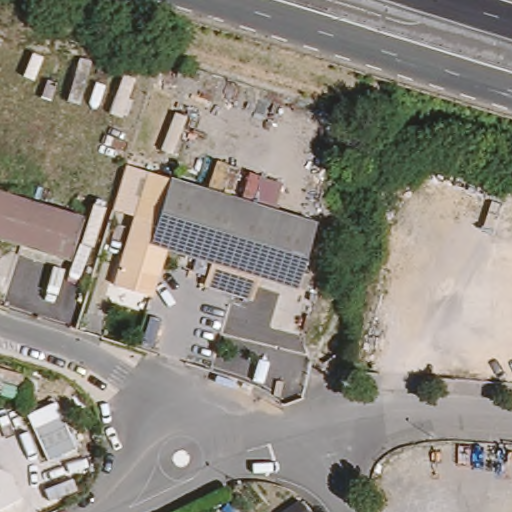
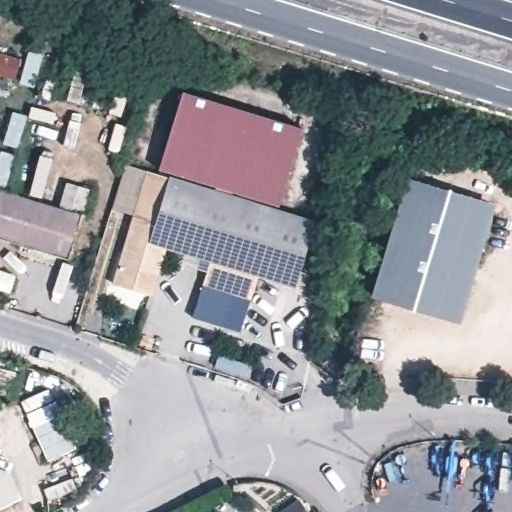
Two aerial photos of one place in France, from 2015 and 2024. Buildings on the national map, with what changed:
new [(15,82),(0,77),(0,53),(22,59),(15,82)]
new [(184,91),(302,127),(280,202),(162,167),(184,91)]
new [(147,206),(162,210),(158,222),(138,216),(115,206),(127,164),(158,171),(147,206)]
unchanged [(317,222),(302,271),(312,273),(307,288),(262,275),(254,300),(231,294),(207,287),(215,262),(172,249),(157,294),(120,283),(138,216),(158,222),(162,210),(147,206),(158,171),(317,222)]
new [(373,295),(407,180),(495,205),(461,323),(373,295)]
unchanged [(73,260),(0,237),(0,190),(87,216),(73,260)]
new [(240,332),(192,317),(211,260),(215,262),(207,287),(231,294),(252,299),(240,332)]
unchanged [(57,408),(77,453),(52,466),(32,421),(57,408)]
unchanged [(22,498),(0,508),(0,468),(10,474),(22,498)]

